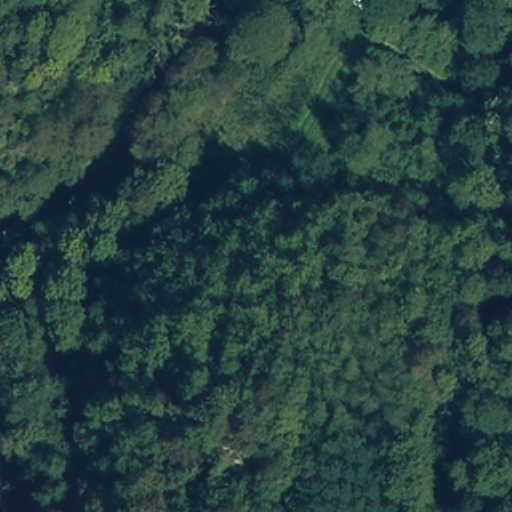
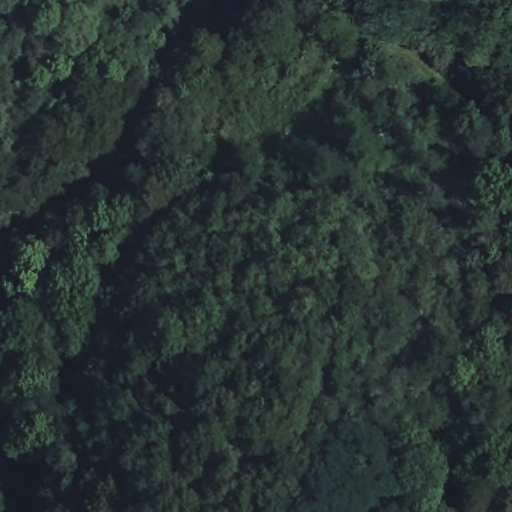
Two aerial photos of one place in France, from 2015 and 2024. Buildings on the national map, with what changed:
unchanged [(356,0),(377,0),(366,14),(356,7),(351,6),(356,0)]

